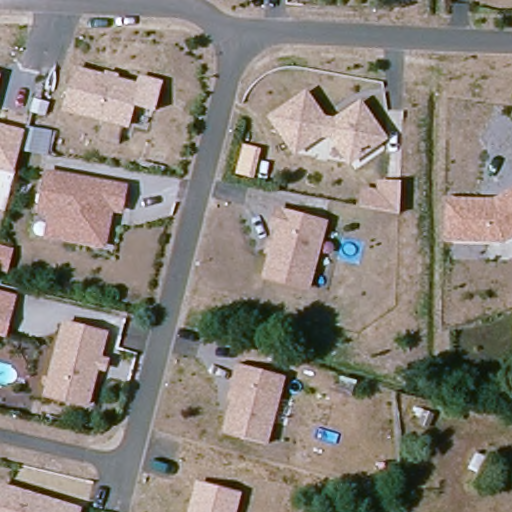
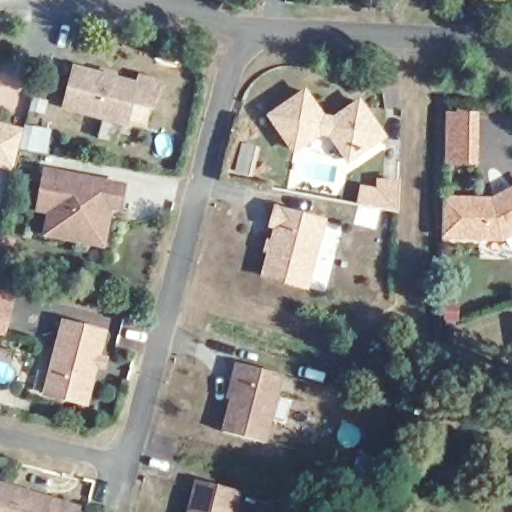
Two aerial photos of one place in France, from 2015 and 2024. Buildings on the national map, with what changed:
unchanged [(75,68),(137,85),(126,124),(64,107),(75,68)]
unchanged [(0,79),(0,73),(2,73),(0,79)]
unchanged [(140,74),(163,80),(157,111),(132,104),(137,85),(140,74)]
unchanged [(270,118),(305,95),(322,121),(333,123),(359,106),(382,140),(347,164),(330,137),(319,136),(293,152),(270,118)]
new [(445,166),(447,112),(480,114),(480,166),(445,166)]
unchanged [(14,172),(0,168),(0,123),(24,131),(14,172)]
unchanged [(30,135),(52,141),(47,162),(24,157),(30,135)]
unchanged [(54,210),(42,207),(50,170),(128,186),(125,202),(124,209),(114,206),(106,244),(67,236),(49,232),(54,210)]
unchanged [(377,190),(378,181),(398,181),(397,211),(377,207),(357,203),(361,186),(377,190)]
unchanged [(497,206),(512,198),(512,240),(506,244),(446,242),(447,204),(497,206)]
unchanged [(327,222),(310,287),(268,277),(282,227),(275,226),(280,209),(327,222)]
unchanged [(7,277),(0,275),(0,254),(12,257),(7,277)]
unchanged [(6,325),(0,323),(0,300),(12,303),(6,325)]
unchanged [(46,377),(64,323),(105,337),(97,362),(105,365),(101,376),(93,373),(82,407),(59,400),(41,393),(46,377)]
unchanged [(252,366),(281,374),(263,442),(237,435),(221,430),(230,397),(225,396),(230,379),(234,362),(252,366)]
unchanged [(0,480),(81,506),(79,512),(0,512),(0,480)]
unchanged [(243,492),(238,512),(188,512),(196,481),(243,492)]

